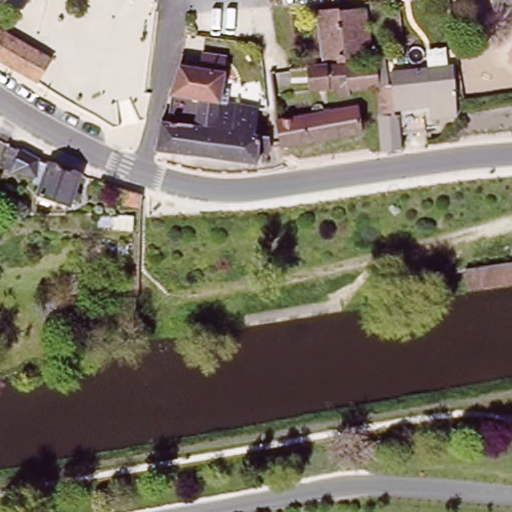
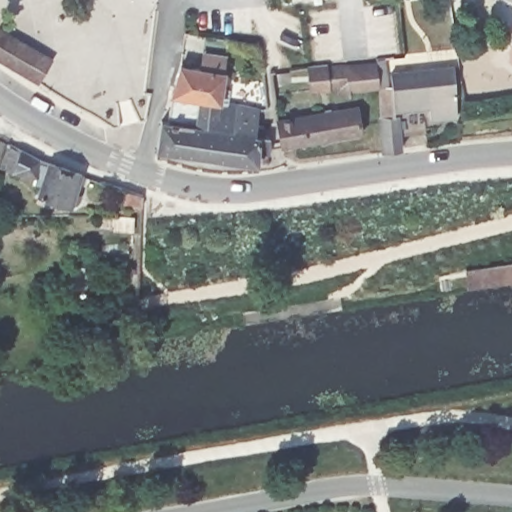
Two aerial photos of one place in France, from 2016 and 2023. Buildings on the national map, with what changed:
unchanged [(338,58),(325,59),(318,11),(367,7),(376,59),(339,64),(338,58)]
unchanged [(1,32),(52,64),(38,87),(0,63),(0,35),(1,32)]
unchanged [(221,70),(218,95),(233,97),(226,124),(165,117),(178,61),(221,70)]
unchanged [(377,89),(356,90),(357,94),(342,95),(341,86),(331,87),(331,90),(276,96),(273,71),(302,67),(328,65),(328,67),(377,61),(380,88),(381,100),(378,100),(377,89)]
unchanged [(434,112),(432,101),(395,104),(391,68),(455,62),(456,110),(434,112)]
unchanged [(264,75),(267,95),(262,95),(261,90),(258,90),(255,75),(264,75)]
unchanged [(226,124),(233,97),(256,101),(253,120),(260,122),(258,131),(263,132),(267,147),(266,160),(261,159),(261,149),(256,148),(255,159),(154,147),(158,116),(165,117),(226,124)]
unchanged [(360,106),(363,132),(283,146),(279,118),(360,106)]
unchanged [(382,145),(380,111),(400,110),(403,144),(382,145)]
unchanged [(10,144),(46,161),(83,174),(73,205),(40,195),(43,185),(36,182),(38,175),(13,170),(1,168),(10,144)]
unchanged [(140,196),(140,209),(140,210),(131,210),(131,205),(121,204),(123,190),(140,196)]
unchanged [(130,230),(108,228),(107,225),(97,225),(97,213),(131,215),(130,230)]
unchanged [(512,261),(512,283),(466,290),(464,268),(512,261)]
unchanged [(71,267),(87,268),(85,290),(70,290),(71,267)]

